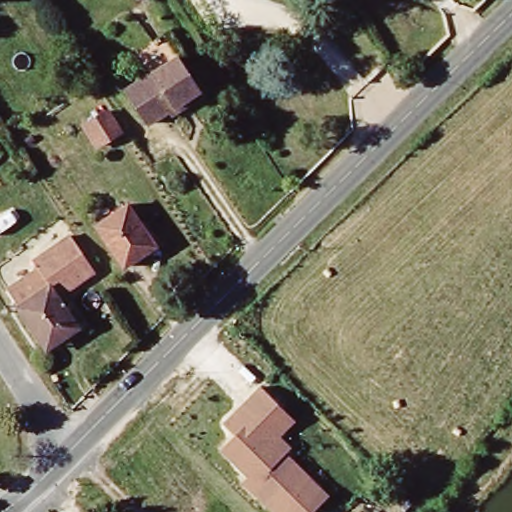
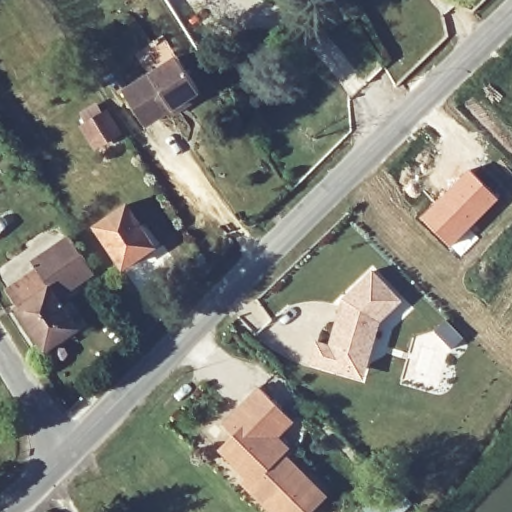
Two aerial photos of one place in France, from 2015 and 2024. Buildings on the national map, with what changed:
unchanged [(201,87),(149,121),(129,91),(182,57),(201,87)]
new [(111,110),(125,132),(102,147),(88,126),(111,110)]
new [(468,168),(499,198),(470,228),(479,237),(460,256),(419,216),(468,168)]
unchanged [(99,225),(130,205),(156,245),(126,265),(99,225)]
unchanged [(59,291),(80,323),(47,344),(9,283),(39,264),(36,254),(73,230),(97,267),(59,291)]
new [(347,375),(307,363),(314,342),(327,346),(335,321),(339,307),(341,300),(370,272),(398,302),(376,322),(366,356),(359,379),(347,375)]
unchanged [(281,436),(291,447),(284,454),(329,496),(313,512),(272,512),(243,484),(248,478),(220,451),(235,436),(222,422),(259,385),(294,422),(281,436)]

